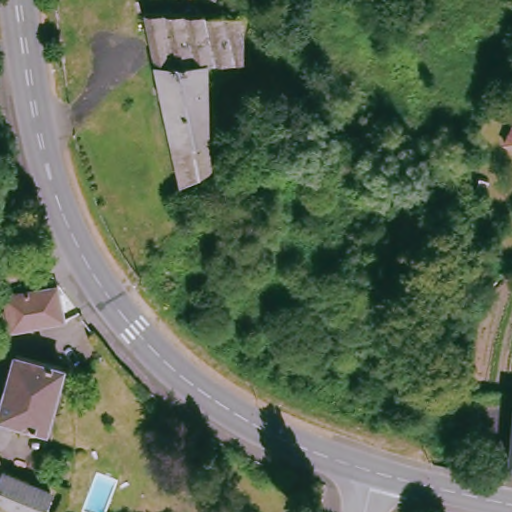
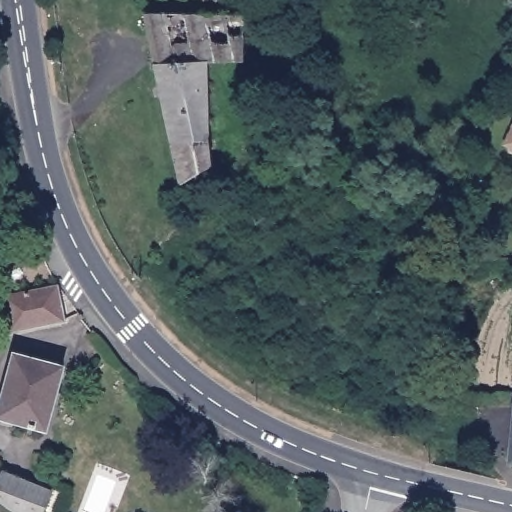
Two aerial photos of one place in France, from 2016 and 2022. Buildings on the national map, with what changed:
unchanged [(248,14),(248,27),(246,62),(208,62),(208,132),(226,145),(206,170),(181,183),(143,10),(248,14)]
unchanged [(512,127),(512,148),(504,145),(512,127)]
unchanged [(54,287),(62,321),(10,332),(3,299),(54,287)]
unchanged [(46,430),(0,418),(0,413),(14,355),(62,367),(46,430)]
unchanged [(509,463),(512,431),(512,463),(509,463)]
unchanged [(55,493),(48,512),(12,512),(0,502),(0,482),(3,473),(55,493)]

